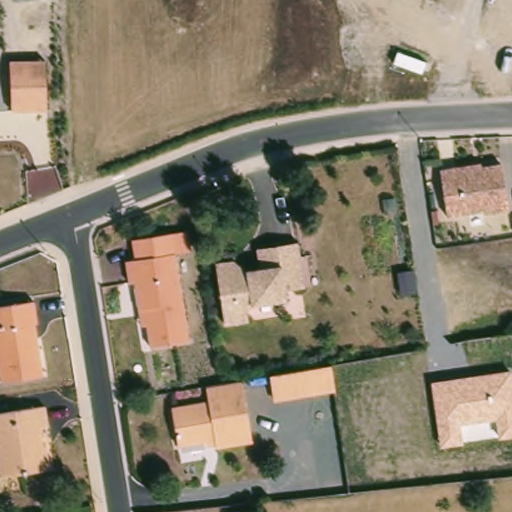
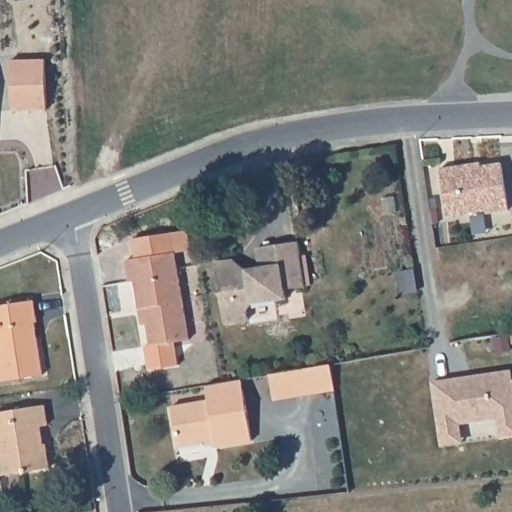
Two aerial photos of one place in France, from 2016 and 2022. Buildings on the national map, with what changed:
unchanged [(17,59),(52,58),(54,108),(19,109),(17,59)]
unchanged [(509,212),(487,215),(486,211),(464,214),(465,217),(449,219),(442,172),(482,165),(483,168),(502,166),(509,212)]
unchanged [(138,312),(134,285),(129,285),(125,264),(135,262),(131,242),(172,236),(187,234),(189,253),(174,256),(189,343),(149,349),(146,327),(140,328),(138,312)]
unchanged [(257,251),(277,248),(299,245),(305,289),(284,292),(286,302),(252,307),(247,314),(249,323),(224,327),(215,266),(234,263),(247,273),(260,271),(257,251)]
unchanged [(0,309),(33,304),(36,326),(34,326),(42,379),(0,385),(0,382),(0,309)]
unchanged [(330,368),(334,392),(275,402),(271,378),(318,370),(330,368)]
unchanged [(431,382),(512,370),(512,437),(499,439),(497,418),(459,424),(462,445),(439,449),(431,382)]
unchanged [(240,383),(251,443),(215,449),(214,441),(178,448),(171,410),(208,404),(205,389),(219,387),(240,383)]
unchanged [(48,428),(40,430),(43,447),(45,447),(49,471),(0,478),(0,475),(0,415),(45,408),(48,428)]

